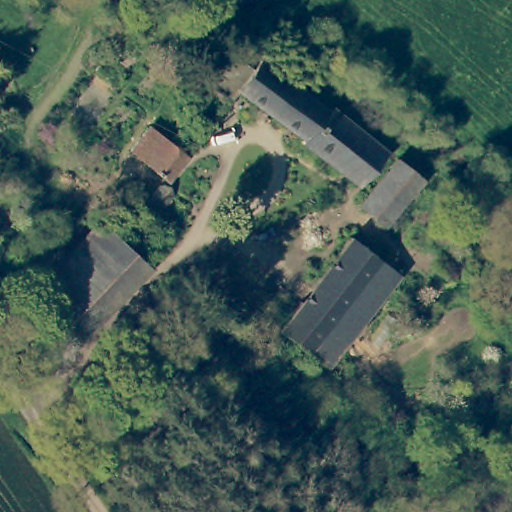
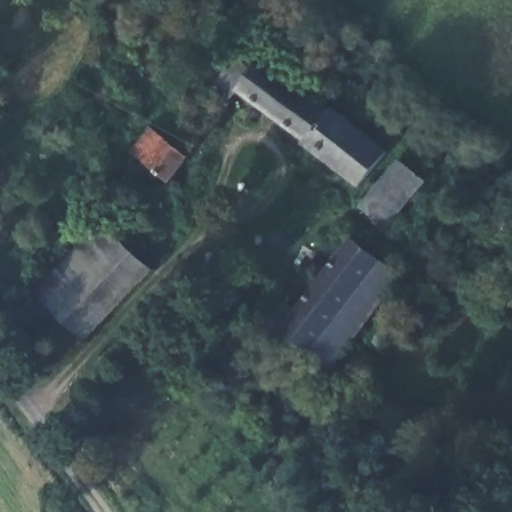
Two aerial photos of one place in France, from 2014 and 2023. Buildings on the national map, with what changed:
unchanged [(389,155),(361,191),(305,147),(307,144),(238,94),(171,185),(134,155),(154,131),(174,147),(238,63),(253,74),(263,63),(331,115),(333,112),(389,155)]
unchanged [(357,206),(395,159),(422,180),(383,226),(357,206)]
unchanged [(175,199),(154,222),(143,212),(164,190),(175,199)]
unchanged [(95,233),(141,275),(75,344),(28,301),(95,233)]
unchanged [(398,273),(329,367),(278,330),(349,236),(398,273)]

